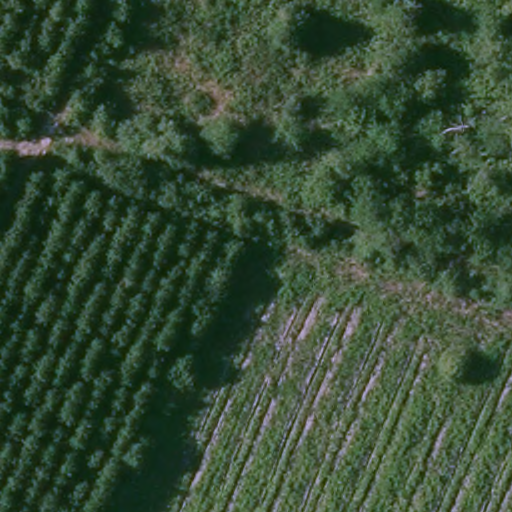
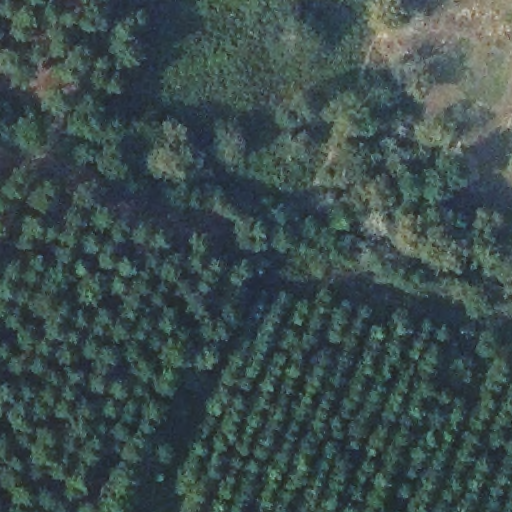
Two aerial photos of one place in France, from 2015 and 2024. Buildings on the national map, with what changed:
[]

